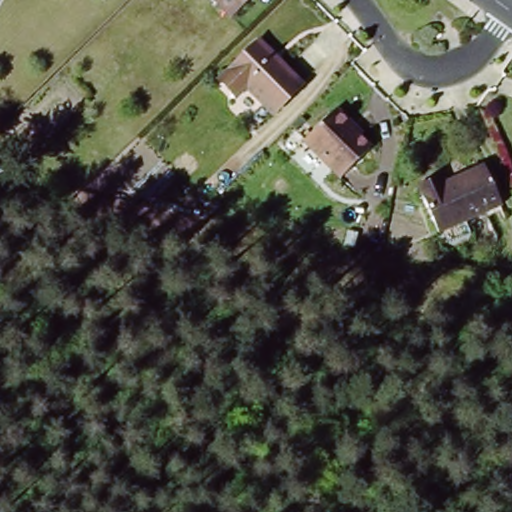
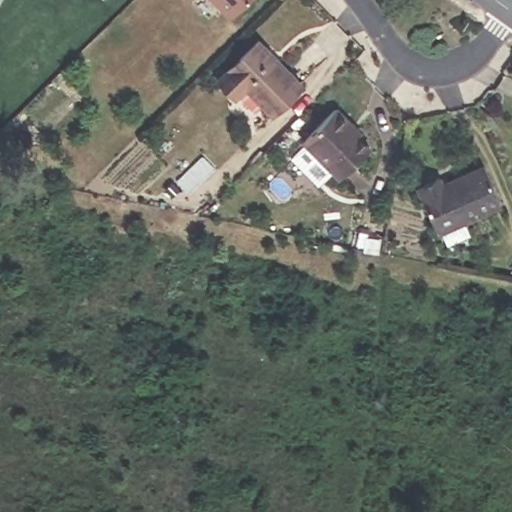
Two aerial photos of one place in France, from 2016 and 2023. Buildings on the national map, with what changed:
unchanged [(207,0),(247,0),(228,19),(207,0)]
unchanged [(241,85),(230,95),(214,80),(255,41),(301,87),(271,116),(241,85)]
unchanged [(300,143),(334,111),(350,127),(346,130),(367,152),(337,180),(300,143)]
unchanged [(466,223),(470,231),(468,236),(448,245),(443,233),(436,236),(415,190),(434,181),(439,188),(481,169),(499,208),(466,223)]

